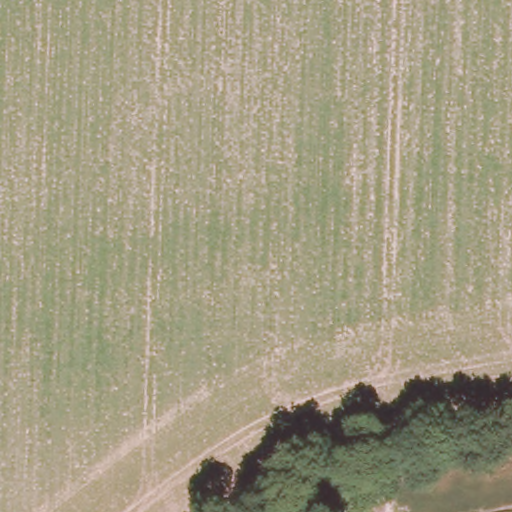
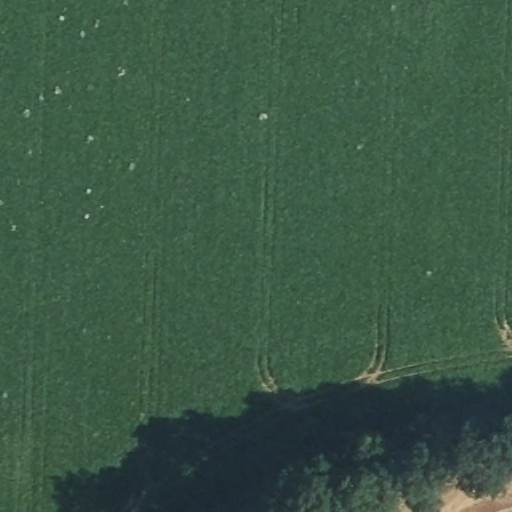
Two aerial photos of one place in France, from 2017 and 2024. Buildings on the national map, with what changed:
unchanged [(353,509),(354,512),(344,512),(353,509)]

